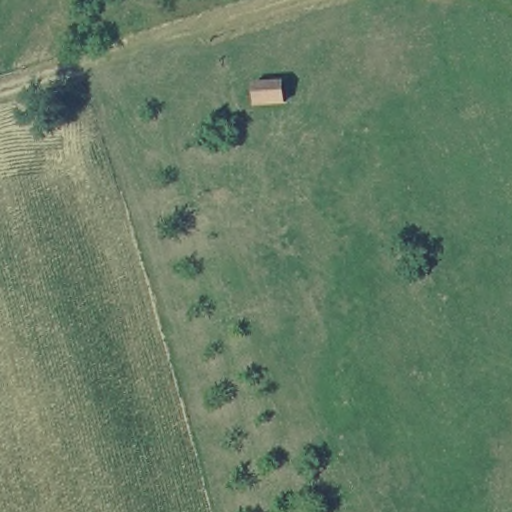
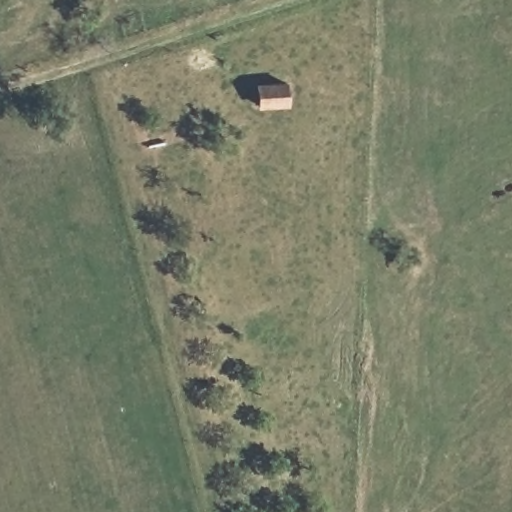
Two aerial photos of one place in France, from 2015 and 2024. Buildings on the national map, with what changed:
unchanged [(290,108),(258,110),(257,84),(290,83),(290,108)]

